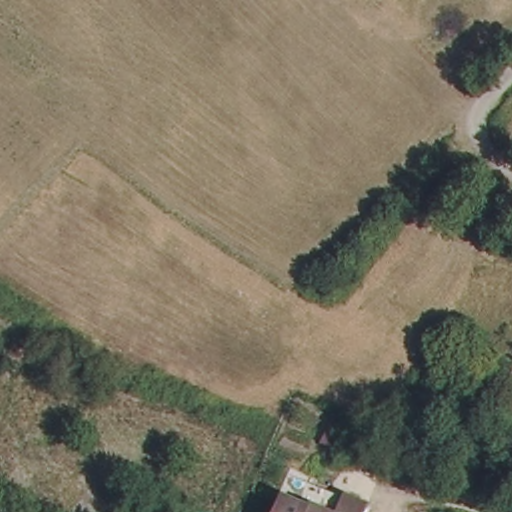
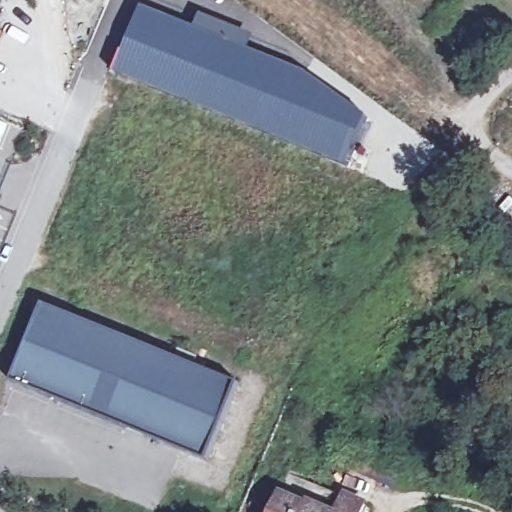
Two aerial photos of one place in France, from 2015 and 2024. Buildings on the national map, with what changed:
new [(0,17),(0,0),(7,0),(9,1),(0,17)]
new [(142,5),(195,26),(200,13),(255,36),(250,50),(305,72),(372,120),(347,169),(212,111),(115,73),(142,5)]
new [(0,48),(0,34),(6,37),(0,48)]
new [(43,305),(239,385),(209,464),(12,382),(43,305)]
unchanged [(342,424),(331,446),(318,441),(330,418),(342,424)]
unchanged [(350,495),(369,503),(365,512),(342,512),(350,495)]
unchanged [(290,497),(315,507),(317,501),(342,512),(284,512),(290,497)]

